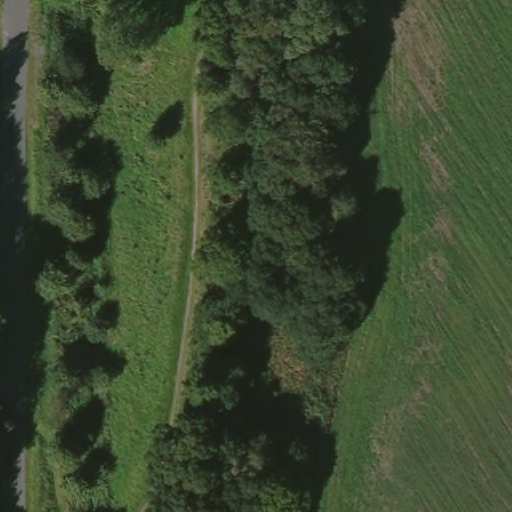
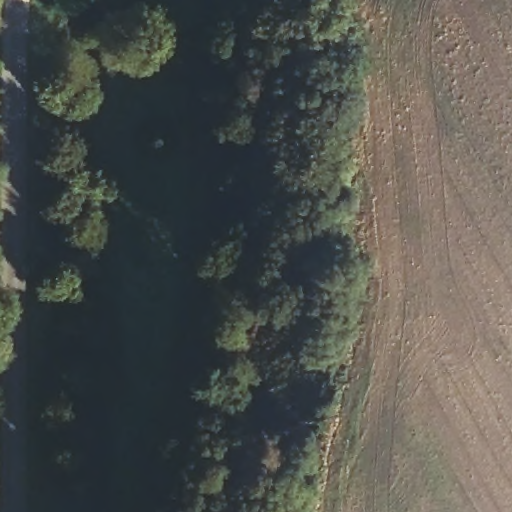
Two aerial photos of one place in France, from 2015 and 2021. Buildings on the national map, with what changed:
[]

